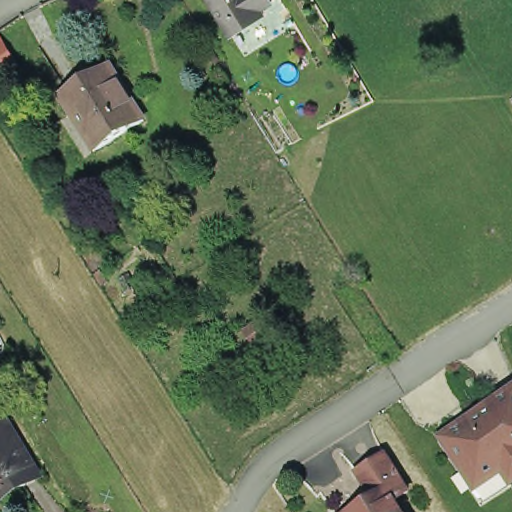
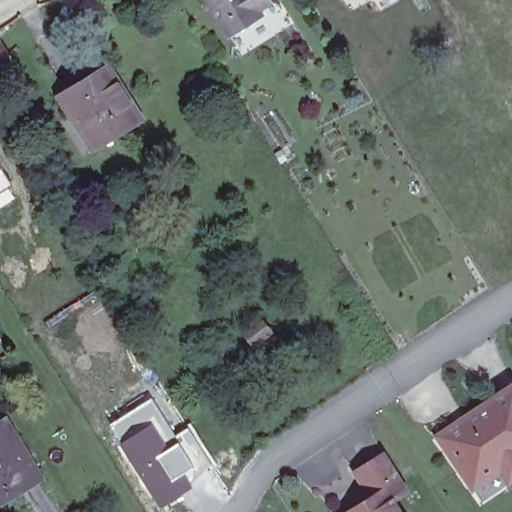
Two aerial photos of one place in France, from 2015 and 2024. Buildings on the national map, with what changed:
unchanged [(250,19),(231,30),(212,0),(266,0),(260,4),(263,10),(250,19)]
unchanged [(17,63),(0,73),(0,35),(17,63)]
unchanged [(100,145),(65,90),(111,61),(145,116),(100,145)]
new [(3,166),(0,168),(0,162),(3,166)]
new [(3,166),(12,184),(7,187),(14,198),(0,207),(0,168),(3,166)]
unchanged [(510,384),(512,387),(512,468),(474,409),(510,384)]
new [(182,439),(171,447),(195,489),(165,508),(114,424),(157,396),(182,439)]
unchanged [(437,440),(434,436),(461,417),(474,409),(512,468),(512,475),(503,480),(496,469),(477,480),(468,486),(456,468),(437,440)]
unchanged [(3,411),(37,468),(2,490),(0,487),(0,414),(3,411)]
unchanged [(356,467),(370,458),(383,449),(407,485),(393,494),(405,512),(353,512),(376,496),(356,467)]

